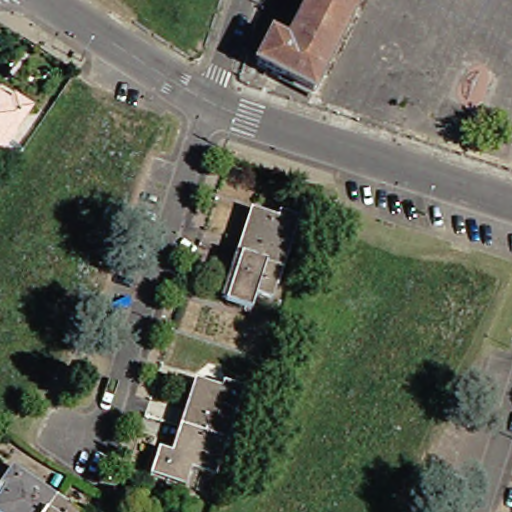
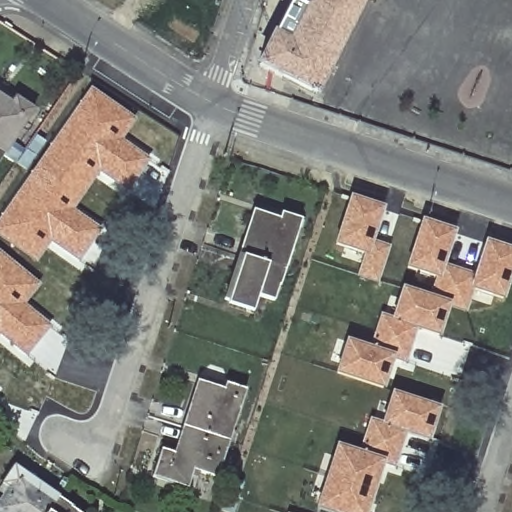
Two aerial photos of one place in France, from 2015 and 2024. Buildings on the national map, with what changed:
unchanged [(267,36),(270,38),(290,0),(356,0),(308,95),(251,65),(262,45),(267,36)]
new [(123,140),(152,160),(128,191),(101,171),(74,209),(103,229),(79,261),(51,242),(36,264),(0,236),(0,218),(91,87),(137,119),(123,140)]
demolished [(114,100),(157,129),(0,363),(0,270),(114,100)]
unchanged [(2,108),(6,102),(22,114),(0,147),(0,106),(2,108)]
new [(373,240),(390,245),(377,284),(356,277),(362,255),(335,245),(350,195),(384,206),(373,240)]
unchanged [(232,261),(247,215),(272,223),(274,219),(292,225),(275,275),(232,261)]
new [(474,275),(486,240),(512,247),(512,277),(504,301),(473,290),(467,313),(450,307),(441,336),(415,328),(405,364),(394,360),(385,389),(335,373),(345,338),(370,346),(380,312),(392,318),(401,285),(428,295),(433,277),(405,267),(421,219),(457,230),(444,265),(474,275)]
new [(26,303),(51,326),(26,355),(0,334),(0,251),(40,285),(26,303)]
demolished [(448,255),(491,284),(336,512),(279,512),(275,510),(448,255)]
unchanged [(232,261),(275,275),(265,305),(246,298),(241,312),(217,305),(232,261)]
unchanged [(189,385),(213,393),(216,384),(237,391),(219,441),(175,426),(189,385)]
new [(431,441),(404,433),(394,467),(384,463),(370,512),(326,512),(315,508),(336,443),(359,450),(369,418),(381,423),(391,390),(441,407),(431,441)]
unchanged [(165,453),(175,426),(219,441),(206,478),(185,471),(178,490),(143,477),(153,449),(165,453)]
unchanged [(2,470),(46,500),(38,512),(0,512),(0,475),(2,470)]
unchanged [(46,500),(65,512),(38,512),(46,500)]

